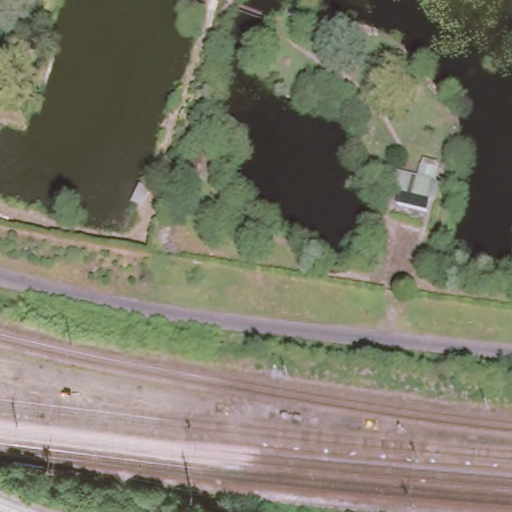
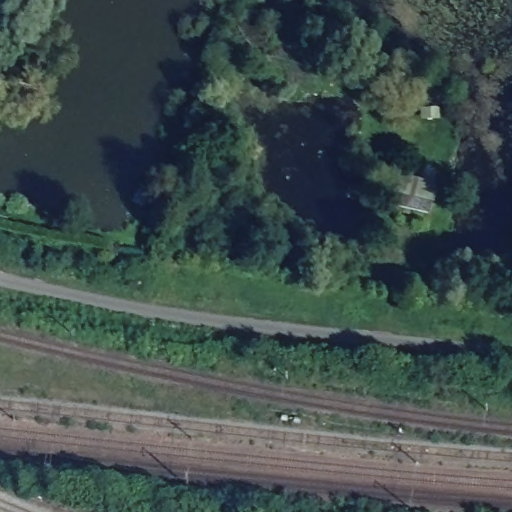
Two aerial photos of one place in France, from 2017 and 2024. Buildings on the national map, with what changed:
unchanged [(400,170),(416,173),(420,161),(438,166),(428,213),(393,208),(400,170)]

